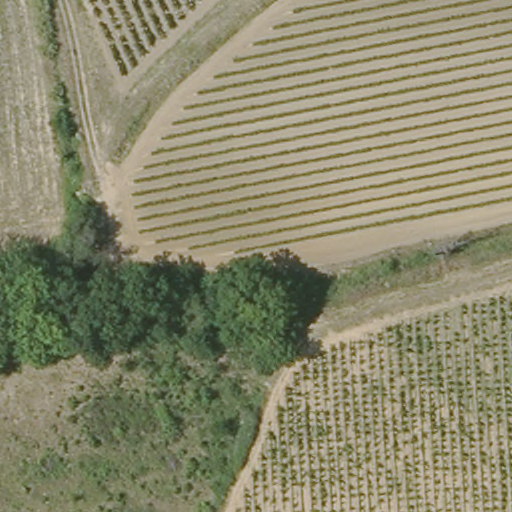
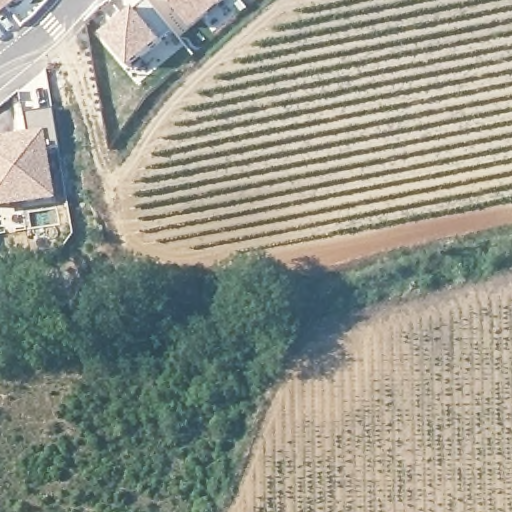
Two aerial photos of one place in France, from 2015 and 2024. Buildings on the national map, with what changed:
new [(0,12),(0,0),(16,0),(0,12)]
new [(222,2),(189,29),(165,0),(220,0),(222,2)]
new [(136,10),(139,13),(149,2),(157,11),(174,33),(163,42),(132,69),(104,37),(136,10)]
new [(27,132),(22,114),(50,109),(56,145),(46,147),(54,200),(0,209),(0,139),(27,132)]

